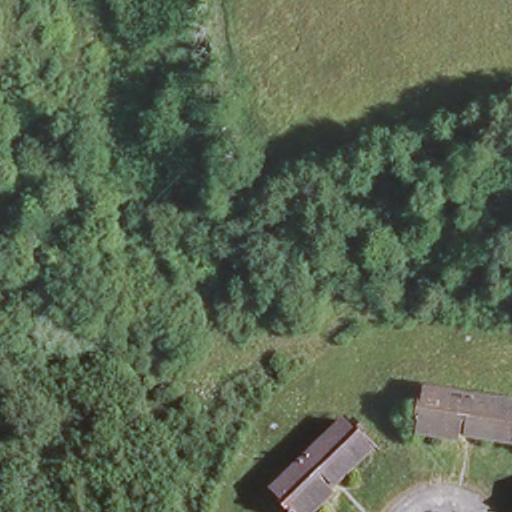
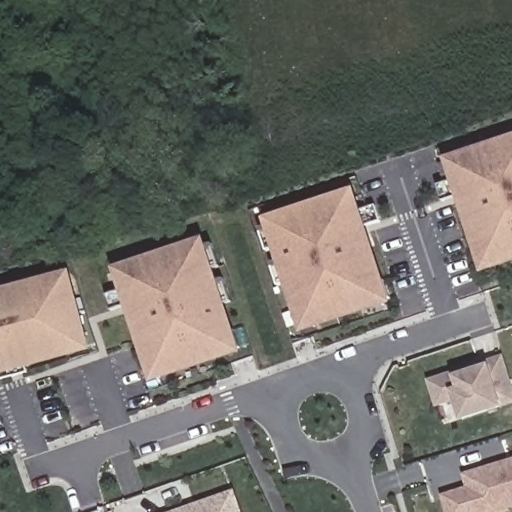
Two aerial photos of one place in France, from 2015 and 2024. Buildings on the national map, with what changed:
new [(512,263),(482,273),(444,157),(512,135),(512,263)]
new [(262,217),(355,187),(392,303),(300,333),(262,217)]
new [(112,267),(204,236),(242,352),(150,382),(112,267)]
new [(0,375),(0,289),(70,271),(92,350),(0,375)]
new [(461,421),(455,402),(436,408),(427,381),(507,356),(512,371),(512,406),(505,408),(461,421)]
demolished [(417,373),(512,387),(512,437),(410,423),(417,373)]
demolished [(337,482),(305,512),(296,512),(267,483),(345,411),(372,442),(332,477),(337,482)]
new [(448,512),(442,495),(468,488),(463,473),(512,460),(512,509),(501,512),(448,512)]
new [(240,512),(179,512),(234,493),(240,512)]

